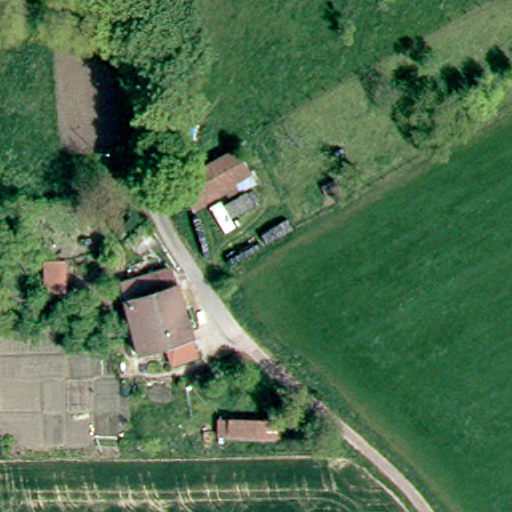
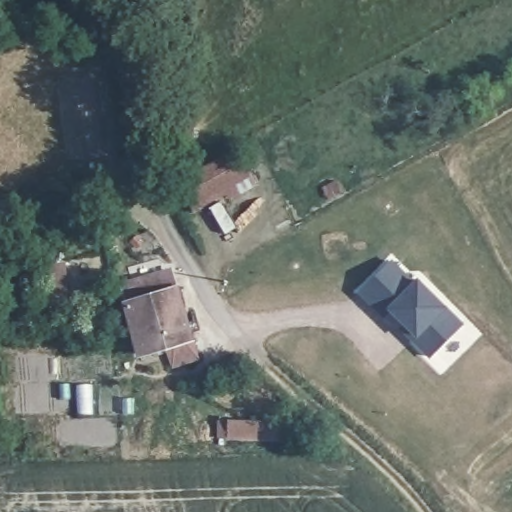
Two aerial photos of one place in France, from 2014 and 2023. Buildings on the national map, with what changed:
unchanged [(257,177),(191,215),(172,178),(236,143),(257,177)]
new [(428,356),(358,292),(392,258),(413,280),(419,276),(449,305),(464,321),(428,356)]
unchanged [(35,270),(52,265),(62,295),(45,300),(35,270)]
unchanged [(125,266),(126,266),(134,268),(143,269),(144,279),(131,281),(125,275),(125,266)]
unchanged [(126,300),(173,288),(193,356),(166,363),(161,344),(138,349),(126,300)]
unchanged [(282,430),(281,444),(208,437),(213,420),(268,426),(272,429),(282,430)]

